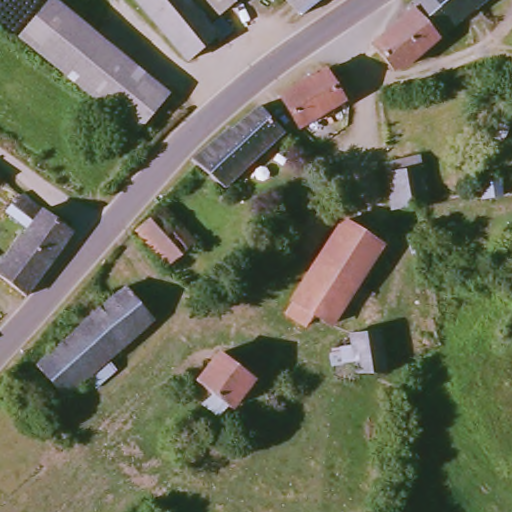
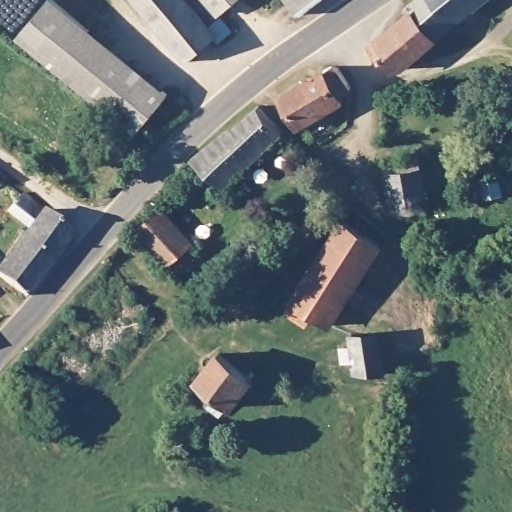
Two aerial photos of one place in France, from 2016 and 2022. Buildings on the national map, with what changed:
unchanged [(20,37),(52,0),(54,0),(72,15),(38,53),(20,37)]
unchanged [(225,46),(219,40),(192,63),(139,0),(210,0),(238,35),(225,46)]
unchanged [(210,0),(238,0),(222,14),(210,0)]
unchanged [(292,0),(323,0),(305,16),(292,0)]
unchanged [(413,10),(425,0),(489,0),(438,44),(415,14),(413,10)]
unchanged [(408,70),(402,72),(394,69),(374,45),(415,14),(438,44),(408,70)]
unchanged [(38,53),(72,15),(78,21),(167,99),(135,136),(44,58),(38,53)]
unchanged [(350,88),(348,97),(295,122),(277,92),(327,65),(339,65),(350,88)]
unchanged [(287,135),(248,171),(227,189),(202,166),(197,161),(235,126),(237,129),(263,106),(287,135)]
unchanged [(432,202),(397,210),(390,162),(423,155),(432,202)]
unchanged [(499,173),(501,179),(502,202),(483,203),(482,175),(490,171),(499,173)]
unchanged [(0,186),(0,178),(4,182),(0,186)]
unchanged [(28,295),(0,273),(0,265),(22,234),(27,237),(36,224),(16,206),(23,194),(75,234),(28,295)]
unchanged [(167,213),(196,247),(177,265),(145,233),(167,213)]
unchanged [(331,226),(313,254),(299,244),(317,217),(331,226)]
unchanged [(347,221),(386,246),(335,325),(297,300),(347,221)]
unchanged [(438,292),(420,291),(417,266),(436,263),(438,292)]
demolished [(63,398),(37,368),(128,289),(153,321),(63,398)]
unchanged [(390,372),(361,374),(359,362),(347,363),(346,348),(357,347),(357,336),(387,334),(390,372)]
unchanged [(257,383),(237,410),(203,385),(223,357),(257,383)]

